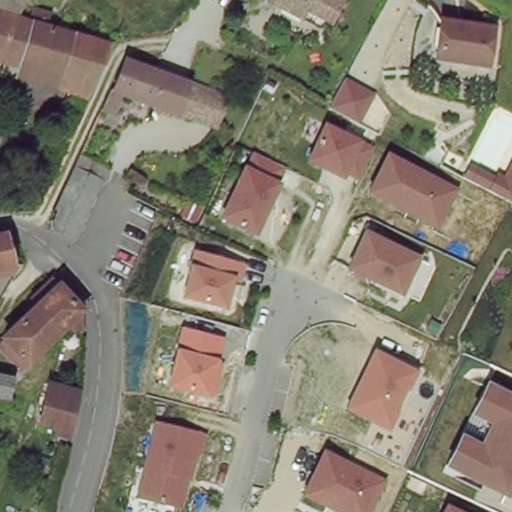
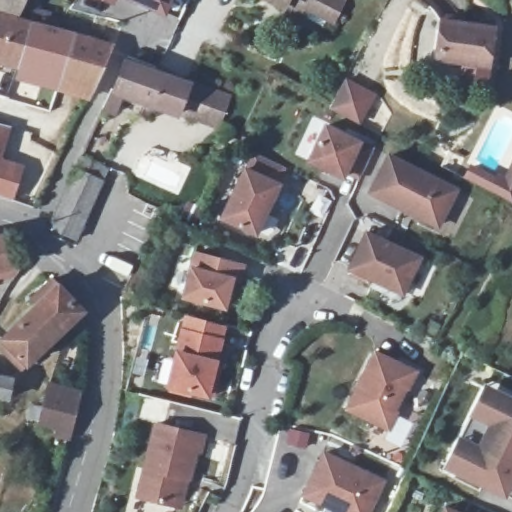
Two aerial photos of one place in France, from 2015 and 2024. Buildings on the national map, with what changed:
unchanged [(0,0),(26,0),(20,13),(18,13),(0,9),(0,0)]
new [(109,0),(112,0),(111,1),(109,0)]
new [(137,0),(169,0),(165,11),(137,0)]
unchanged [(311,15),(276,0),(341,0),(330,24),(311,15)]
unchanged [(58,29),(114,44),(113,48),(95,85),(0,59),(0,9),(18,13),(16,18),(58,29)]
unchanged [(440,23),(494,31),(488,68),(434,60),(440,23)]
unchanged [(216,119),(212,128),(123,91),(116,111),(103,107),(112,89),(115,89),(128,59),(188,84),(191,78),(192,75),(201,79),(198,87),(216,94),(225,97),(216,119)]
unchanged [(330,106),(346,78),(379,93),(361,123),(330,106)]
unchanged [(347,175),(345,180),(308,161),(326,123),(366,142),(379,149),(363,181),(347,175)]
new [(3,157),(25,164),(13,200),(0,196),(0,124),(10,126),(3,157)]
unchanged [(221,219),(246,164),(253,153),(290,167),(283,182),(259,234),(221,219)]
unchanged [(368,192),(388,155),(460,188),(440,229),(368,192)]
unchanged [(53,219),(53,205),(75,157),(105,171),(77,229),(53,219)]
unchanged [(474,161),(505,176),(512,162),(512,201),(467,177),(474,161)]
unchanged [(346,269),(368,231),(424,255),(405,296),(346,269)]
unchanged [(15,266),(0,270),(0,235),(6,234),(15,266)]
unchanged [(183,296),(192,261),(195,250),(246,262),(241,283),(235,282),(228,309),(183,296)]
unchanged [(13,345),(3,334),(20,318),(35,302),(41,296),(36,292),(53,275),(56,281),(83,307),(85,314),(85,332),(81,330),(66,322),(60,327),(45,343),(23,364),(7,352),(13,345)]
unchanged [(166,386),(181,327),(225,338),(219,358),(225,361),(216,398),(166,386)]
unchanged [(346,409),(374,350),(418,370),(386,429),(346,409)]
unchanged [(7,395),(0,394),(0,372),(11,375),(7,395)]
unchanged [(53,436),(54,431),(35,424),(39,407),(45,383),(78,391),(73,417),(66,440),(53,436)]
unchanged [(506,498),(444,465),(460,432),(480,442),(488,424),(471,413),(487,383),(512,395),(512,487),(506,498)]
unchanged [(136,497),(154,422),(205,434),(185,510),(136,497)]
unchanged [(302,495),(325,451),(388,480),(372,512),(335,512),(302,495)]
unchanged [(446,503),(463,512),(442,512),(446,503)]

